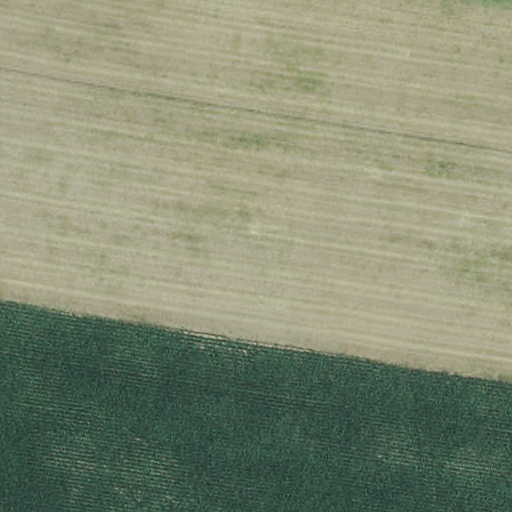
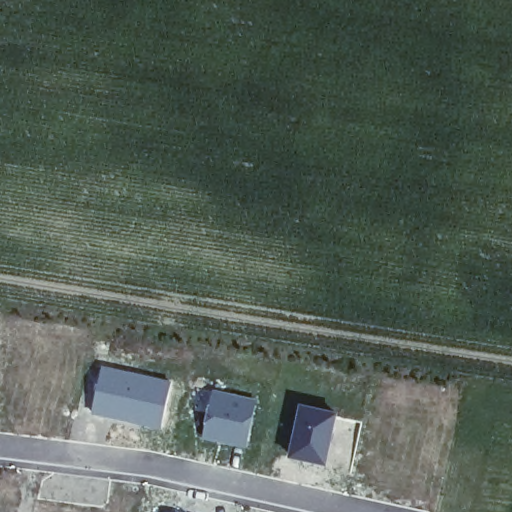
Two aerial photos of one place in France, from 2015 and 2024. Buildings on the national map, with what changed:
new [(100,363),(171,380),(160,429),(89,412),(100,363)]
new [(208,387),(257,397),(245,447),(200,437),(208,387)]
new [(299,401),(338,411),(326,465),(286,456),(299,401)]
new [(165,512),(159,512),(160,511),(165,512)]

